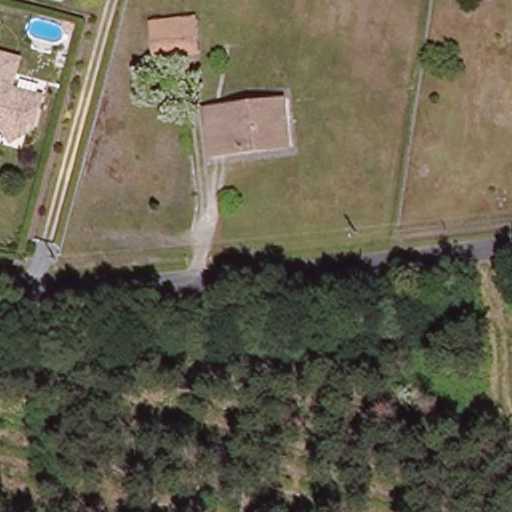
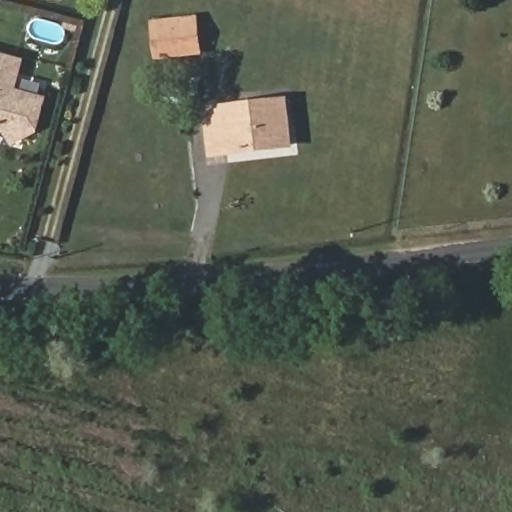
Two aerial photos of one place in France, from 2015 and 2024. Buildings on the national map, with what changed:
unchanged [(152,34),(150,25),(191,19),(193,28),(197,57),(158,63),(152,34)]
unchanged [(23,59),(17,90),(31,93),(47,96),(37,135),(27,132),(9,128),(10,120),(0,117),(0,54),(23,59)]
unchanged [(286,94),(293,138),(218,149),(214,119),(211,105),(216,104),(286,94)]

